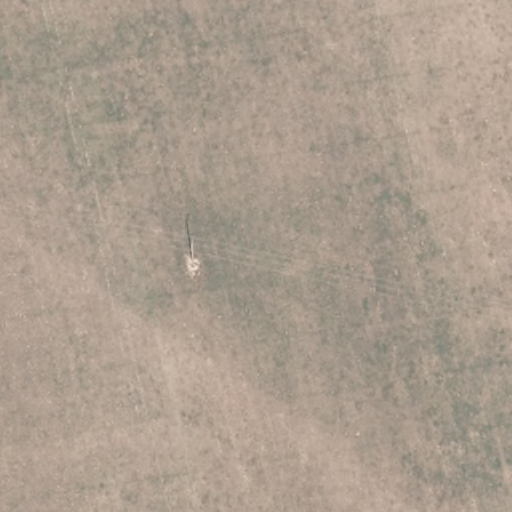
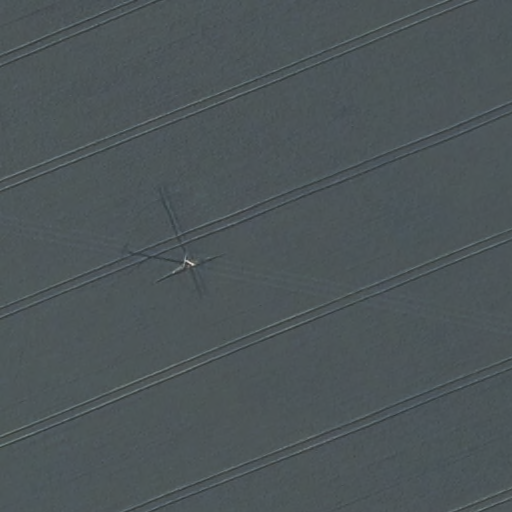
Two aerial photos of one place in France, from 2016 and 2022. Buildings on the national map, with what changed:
[]

